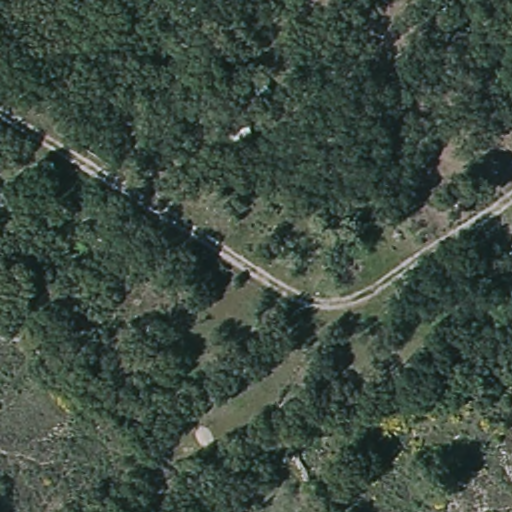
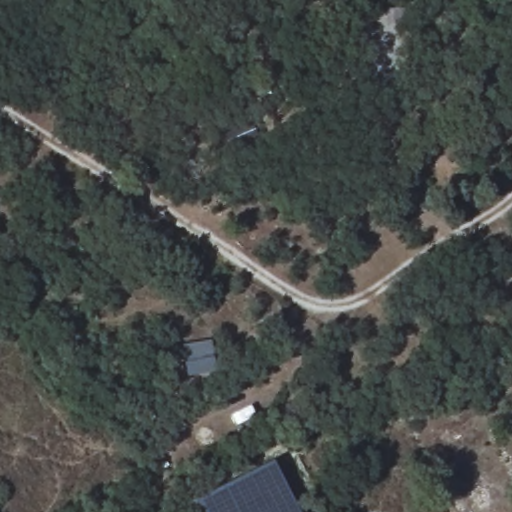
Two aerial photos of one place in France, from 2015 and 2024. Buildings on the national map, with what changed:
unchanged [(389,326),(399,318),(415,337),(404,345),(389,326)]
new [(274,459),(301,512),(200,512),(194,500),(274,459)]

